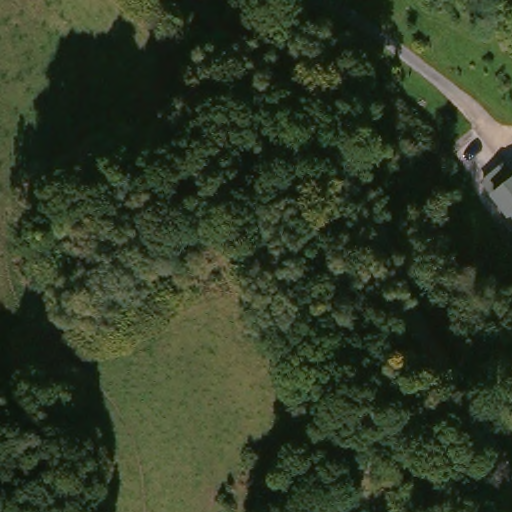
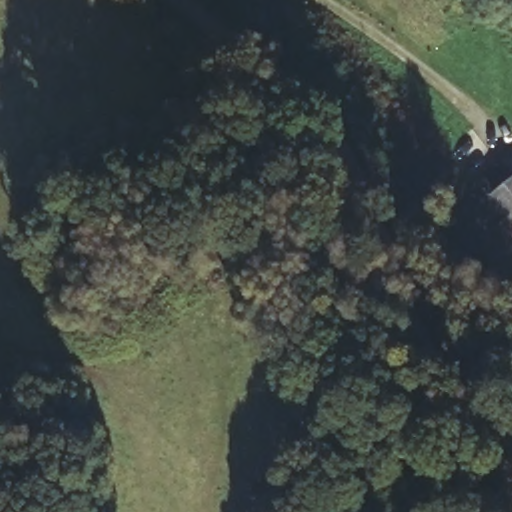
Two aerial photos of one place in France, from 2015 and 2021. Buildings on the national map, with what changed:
unchanged [(492,236),(508,224),(482,191),(506,172),(512,179),(512,264),(509,260),(492,236)]

